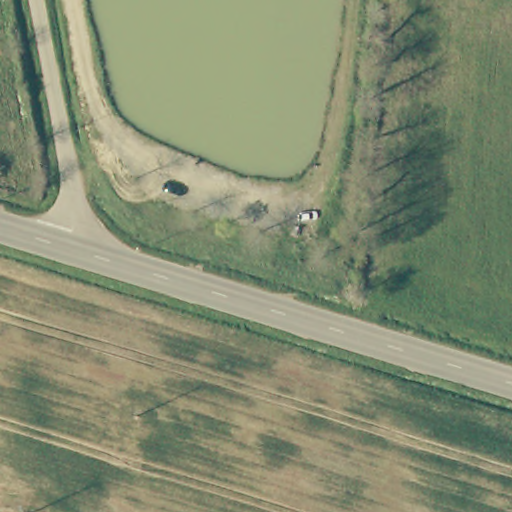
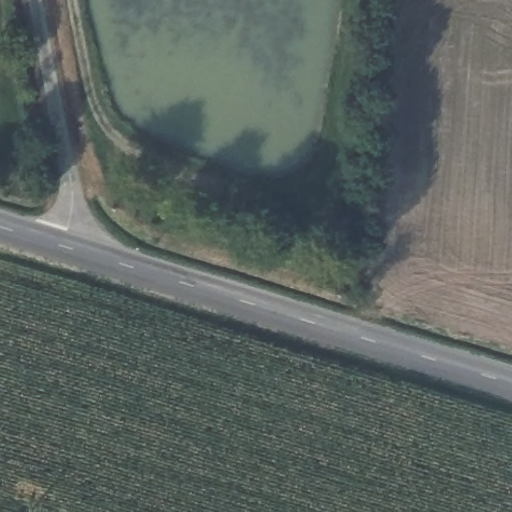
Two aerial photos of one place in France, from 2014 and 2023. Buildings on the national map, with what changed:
[]

